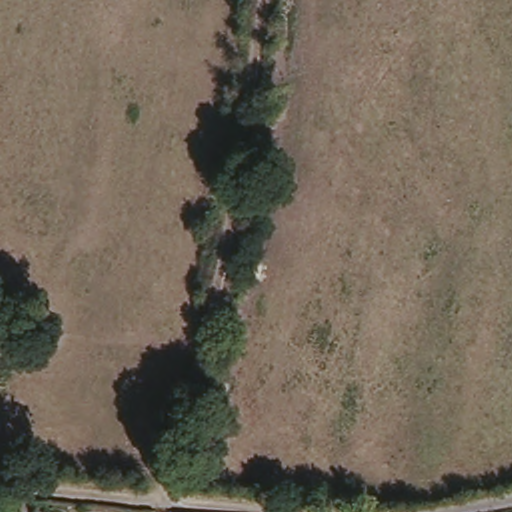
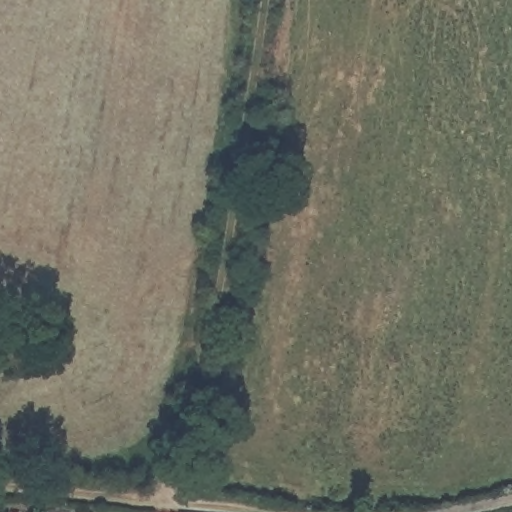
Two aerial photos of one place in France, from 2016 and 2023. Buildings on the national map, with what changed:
unchanged [(1,512),(0,512),(0,507),(2,508),(1,512)]

